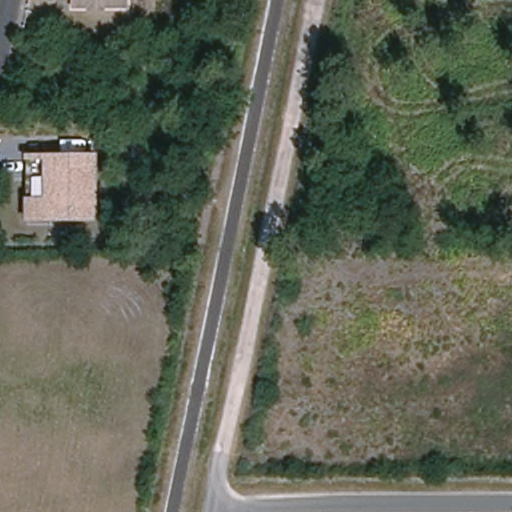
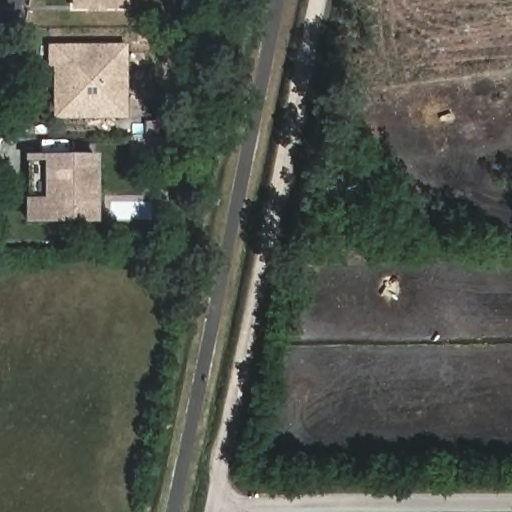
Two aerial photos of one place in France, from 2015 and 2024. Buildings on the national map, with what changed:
unchanged [(71,0),(125,0),(125,5),(71,4),(71,0)]
new [(54,119),(53,46),(127,44),(128,118),(54,119)]
new [(143,137),(143,122),(157,122),(157,137),(166,137),(167,155),(133,155),(133,137),(143,137)]
unchanged [(25,222),(25,155),(95,156),(94,221),(25,222)]

